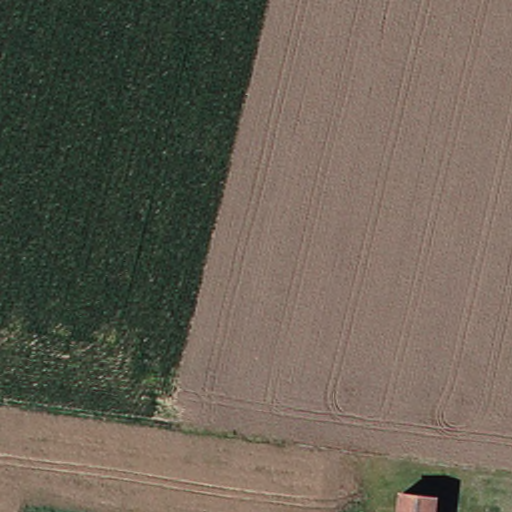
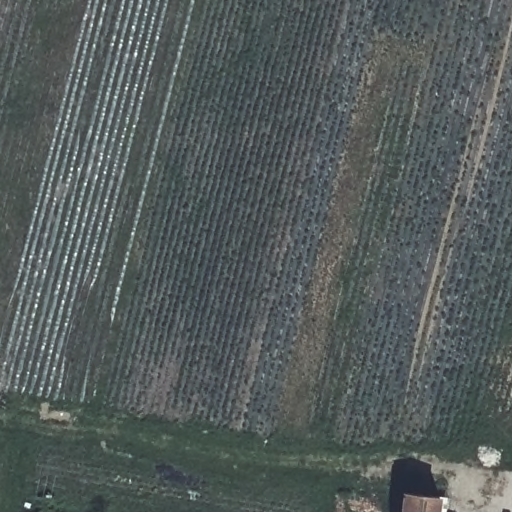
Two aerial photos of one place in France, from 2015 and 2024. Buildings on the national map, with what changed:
unchanged [(434,500),(433,512),(398,512),(400,495),(434,500)]

